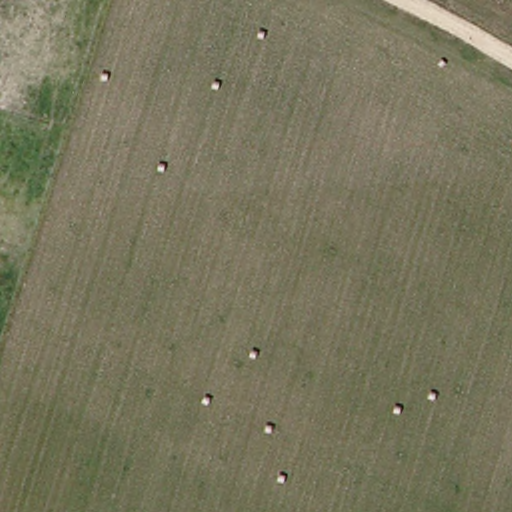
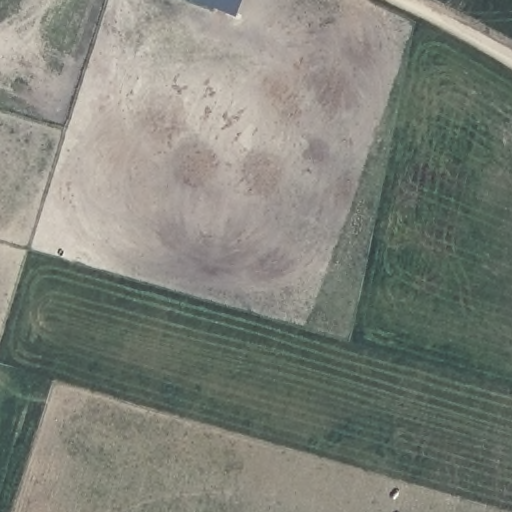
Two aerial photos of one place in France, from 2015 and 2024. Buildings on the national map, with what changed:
new [(198,0),(244,0),(237,17),(198,0)]

